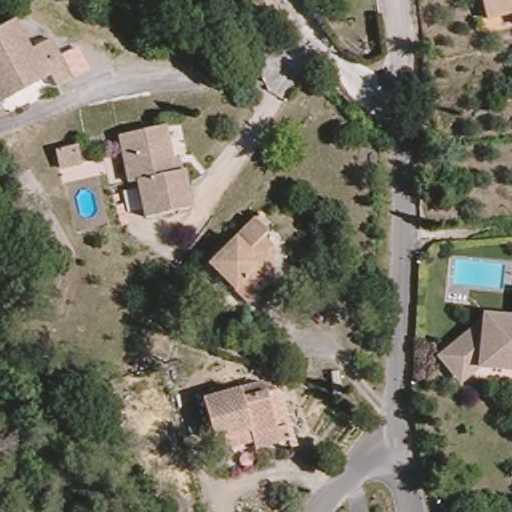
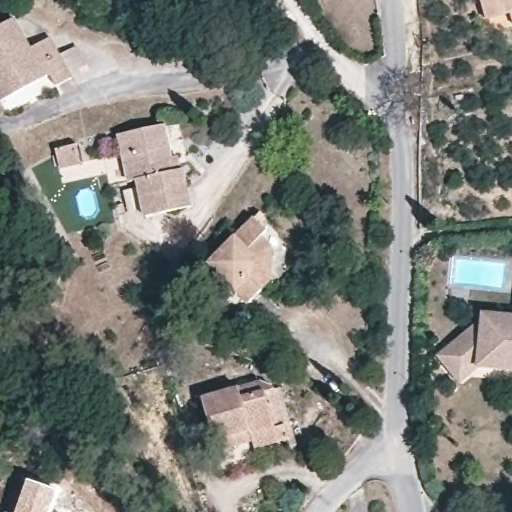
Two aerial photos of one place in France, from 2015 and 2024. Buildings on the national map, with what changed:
unchanged [(491,19),(485,0),(512,0),(512,14),(491,19)]
unchanged [(29,48),(48,37),(71,78),(55,86),(49,74),(0,101),(0,25),(12,18),(29,48)]
unchanged [(186,167),(193,205),(186,206),(149,213),(142,177),(131,179),(122,132),(165,123),(172,155),(179,154),(181,168),(175,170),(183,168),(186,167)]
unchanged [(270,227),(266,231),(279,243),(276,274),(253,298),(213,258),(258,214),(270,227)]
unchanged [(478,367),(459,384),(455,378),(439,356),(465,335),(482,321),(483,314),(512,317),(512,370),(478,367)]
unchanged [(214,441),(211,431),(203,398),(208,397),(244,385),(257,383),(259,388),(264,390),(274,393),(288,438),(255,449),(252,440),(216,450),(214,441)]
new [(59,491),(54,508),(52,512),(16,512),(28,480),(59,491)]

